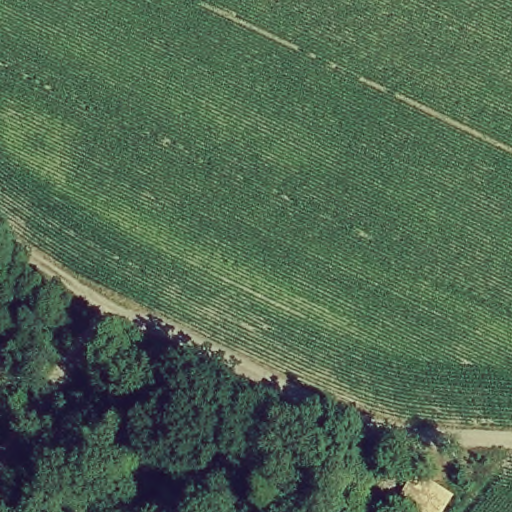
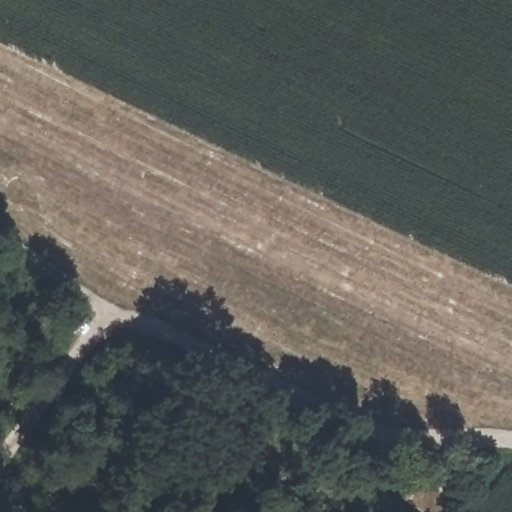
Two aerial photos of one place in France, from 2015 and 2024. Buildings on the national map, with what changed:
unchanged [(445,512),(414,512),(394,497),(412,461),(460,490),(445,512)]

